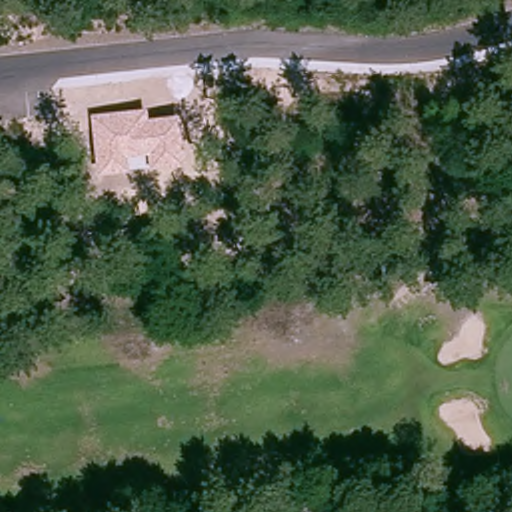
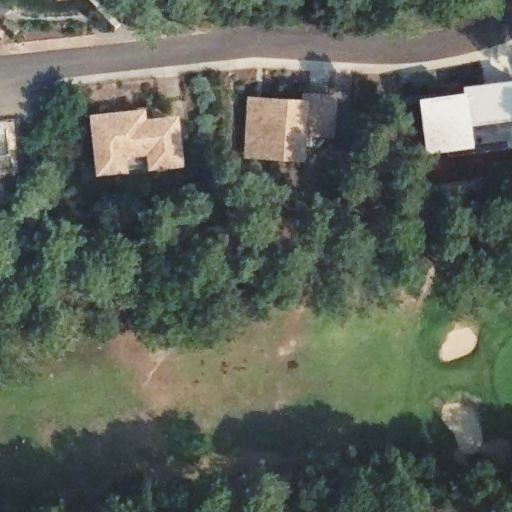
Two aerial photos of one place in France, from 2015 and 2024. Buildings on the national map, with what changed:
new [(435,153),(433,143),(426,144),(420,99),(467,92),(466,87),(512,80),(512,120),(472,126),(475,147),(435,153)]
new [(301,99),(302,91),(337,93),(335,139),(305,138),(304,163),(245,164),(247,96),(301,99)]
unchanged [(97,177),(90,114),(147,108),(146,120),(180,116),(185,166),(150,170),(148,154),(127,157),(129,173),(97,177)]

